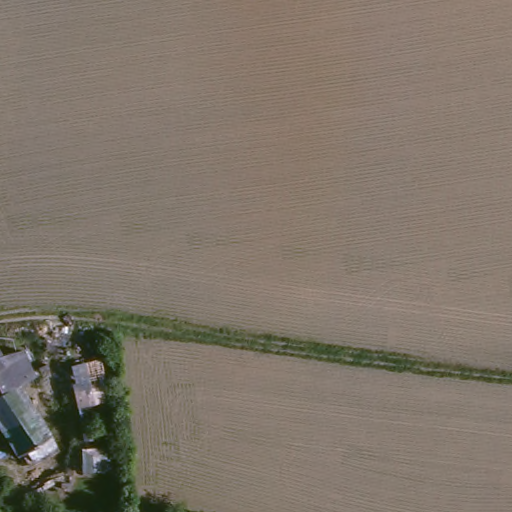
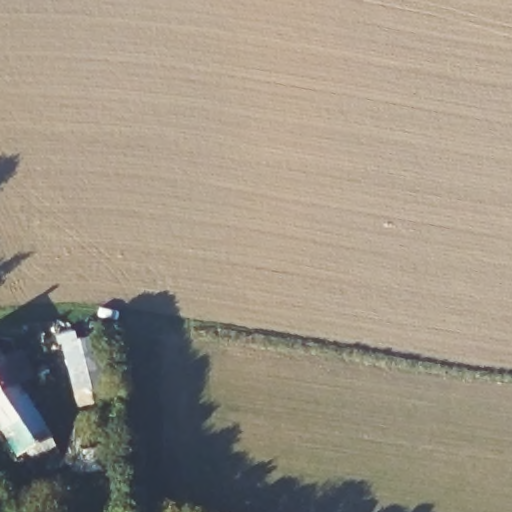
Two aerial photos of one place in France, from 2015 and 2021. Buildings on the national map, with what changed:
unchanged [(16,381),(0,391),(0,346),(11,339),(12,339),(15,337),(31,362),(35,369),(16,381)]
unchanged [(33,458),(26,449),(17,455),(0,427),(0,391),(16,381),(55,444),(33,458)]

